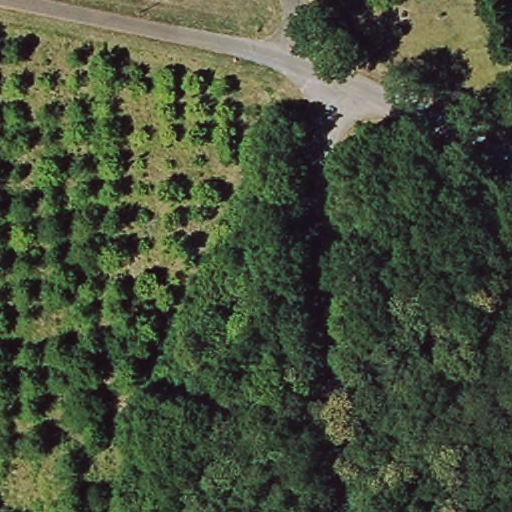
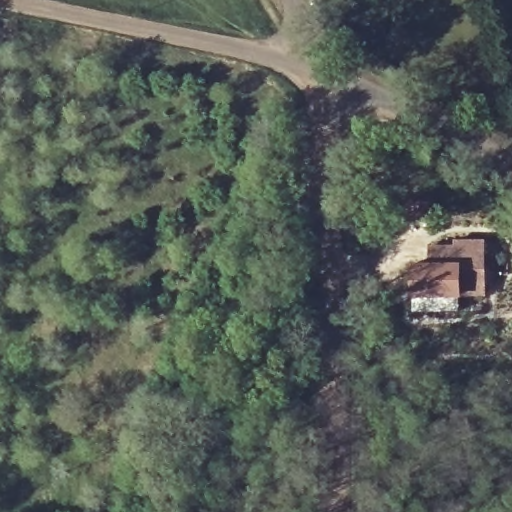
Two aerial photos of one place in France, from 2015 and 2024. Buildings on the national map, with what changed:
new [(458,296),(411,297),(411,267),(429,267),(429,249),(455,249),(455,242),(479,242),(479,290),(479,296),(458,296)]

